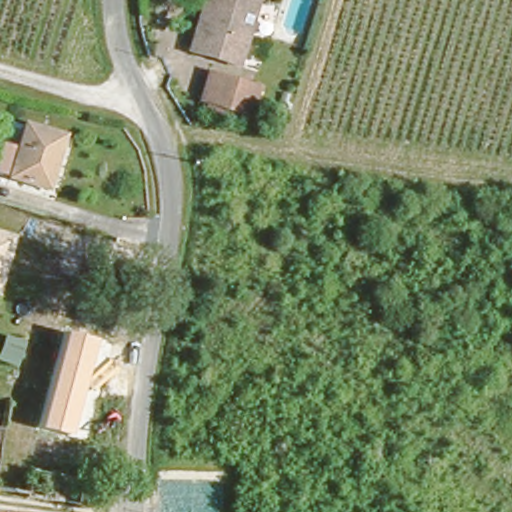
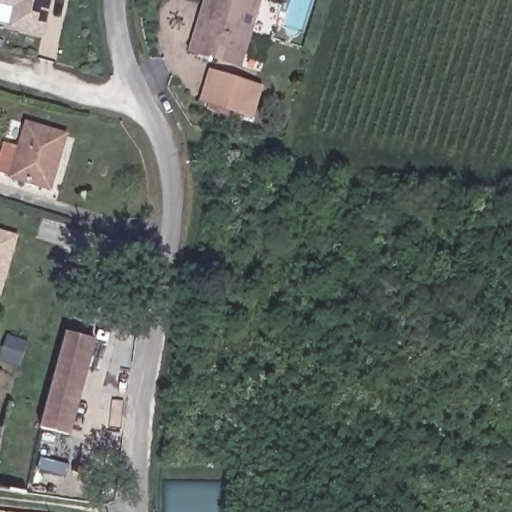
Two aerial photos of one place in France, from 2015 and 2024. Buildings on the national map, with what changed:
new [(43,34),(11,26),(15,6),(0,3),(0,0),(51,0),(43,34)]
unchanged [(241,61),(191,46),(201,12),(205,0),(259,0),(241,61)]
unchanged [(204,100),(212,73),(261,87),(253,115),(204,100)]
unchanged [(65,131),(49,184),(0,169),(0,162),(5,145),(18,148),(26,120),(65,131)]
unchanged [(0,296),(0,229),(18,235),(0,297),(0,296)]
unchanged [(71,436),(41,428),(67,332),(97,340),(71,436)]
unchanged [(3,425),(0,439),(0,424),(3,425)]

